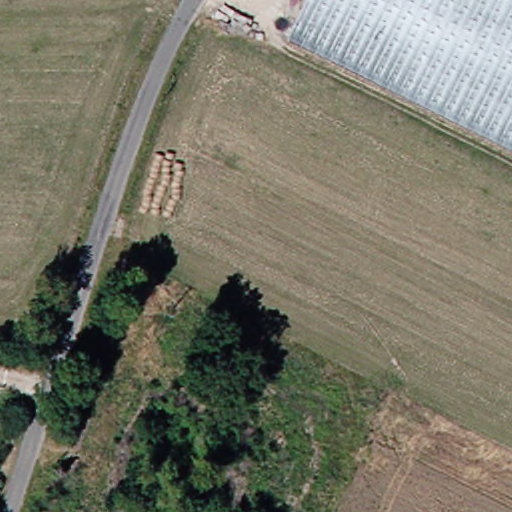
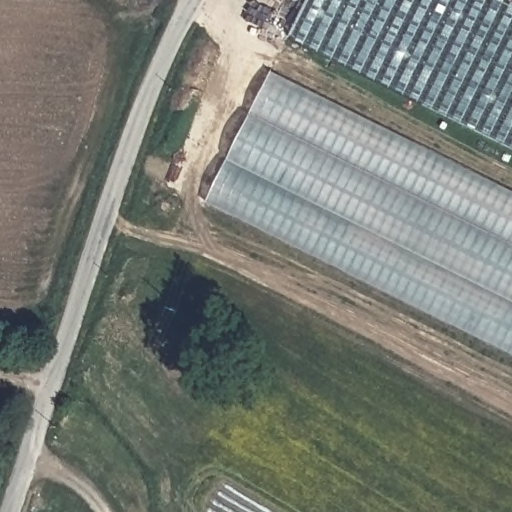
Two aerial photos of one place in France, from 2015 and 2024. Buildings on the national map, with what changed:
unchanged [(302,0),(512,0),(512,154),(282,40),(302,0)]
new [(271,70),(512,191),(512,355),(207,200),(271,70)]

